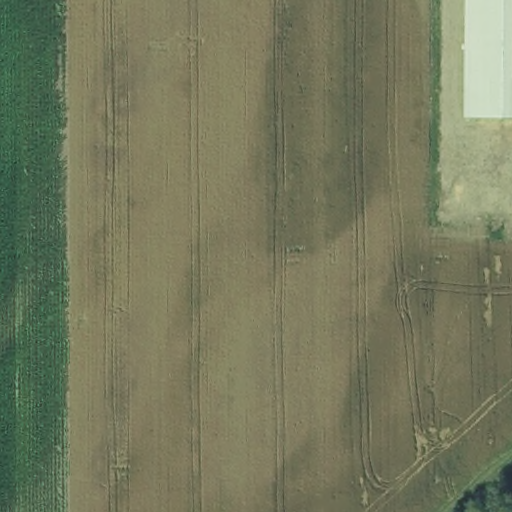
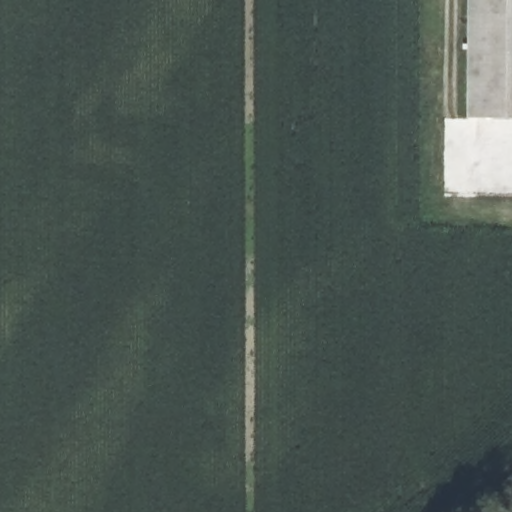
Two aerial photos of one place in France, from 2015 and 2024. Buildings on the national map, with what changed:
unchanged [(512,0),(512,117),(467,116),(468,0),(512,0)]

